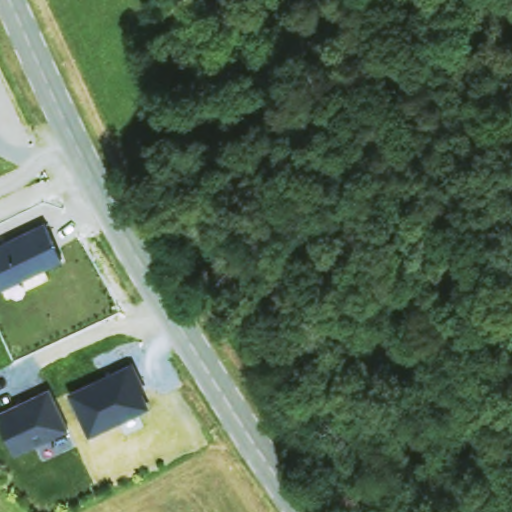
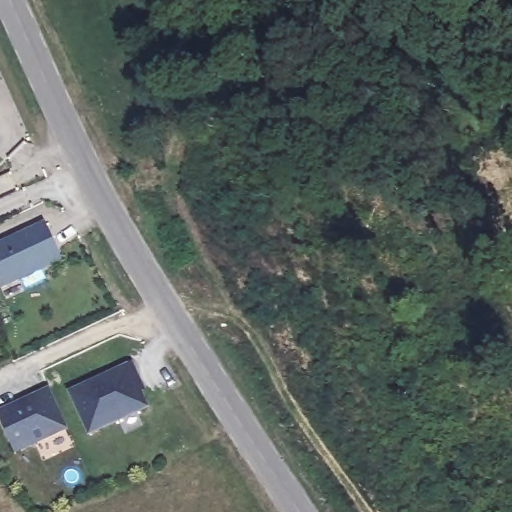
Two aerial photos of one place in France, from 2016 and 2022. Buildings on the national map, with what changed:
unchanged [(64,260),(45,270),(44,268),(2,287),(0,282),(0,247),(47,225),(64,260)]
unchanged [(145,404),(91,430),(71,388),(133,359),(141,375),(145,385),(141,386),(145,394),(145,404)]
unchanged [(65,428),(12,453),(0,427),(0,412),(47,389),(65,428)]

